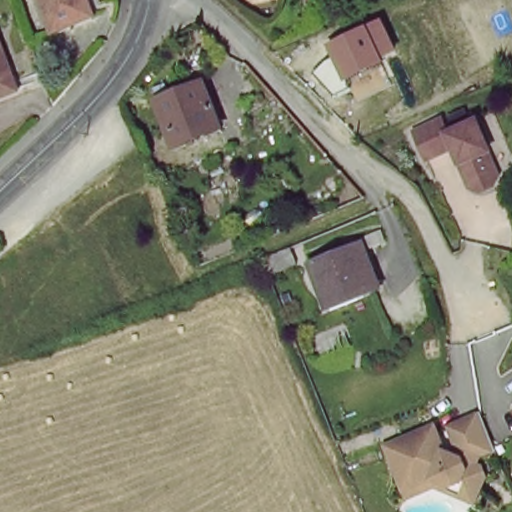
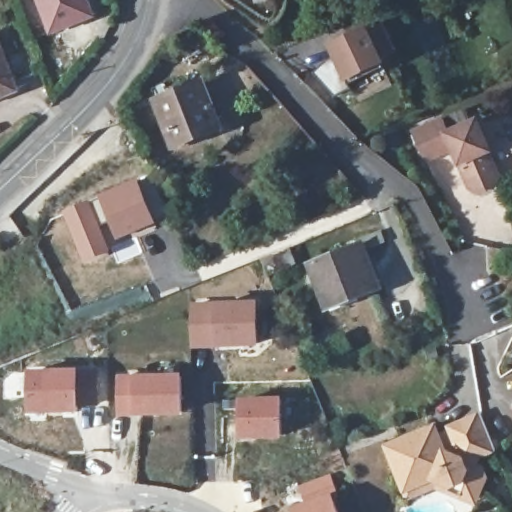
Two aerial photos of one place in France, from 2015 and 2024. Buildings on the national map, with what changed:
unchanged [(66,20),(51,26),(40,0),(85,0),(88,6),(92,14),(67,23),(66,20)]
unchanged [(330,43),(382,20),(397,54),(346,80),(330,43)]
unchanged [(0,95),(0,48),(13,80),(16,88),(0,95)]
unchanged [(174,136),(171,127),(165,129),(153,101),(200,83),(219,126),(198,135),(177,143),(174,136)]
unchanged [(415,137),(443,124),(449,138),(478,124),(492,154),(490,155),(501,179),(496,189),(483,195),(473,191),(454,151),(428,163),(415,137)]
new [(137,175),(158,222),(119,240),(97,192),(137,175)]
new [(89,198),(112,249),(83,262),(61,210),(89,198)]
unchanged [(323,304),(309,266),(360,246),(375,283),(323,304)]
new [(257,298),(259,345),(190,348),(188,300),(257,298)]
new [(79,367),(80,411),(28,413),(26,369),(79,367)]
new [(182,372),(183,415),(115,417),(114,373),(182,372)]
unchanged [(444,402),(438,388),(447,384),(453,399),(444,402)]
new [(281,395),(283,440),(238,441),(237,397),(281,395)]
unchanged [(433,485),(406,496),(403,489),(386,445),(433,426),(444,452),(453,456),(458,444),(456,443),(449,427),(481,414),(491,441),(494,449),(481,454),(479,454),(474,465),(480,468),(484,478),(479,489),(473,502),(433,485)]
new [(290,504),(302,500),(296,485),(329,472),(336,490),(333,491),(340,512),(293,512),(290,504)]

